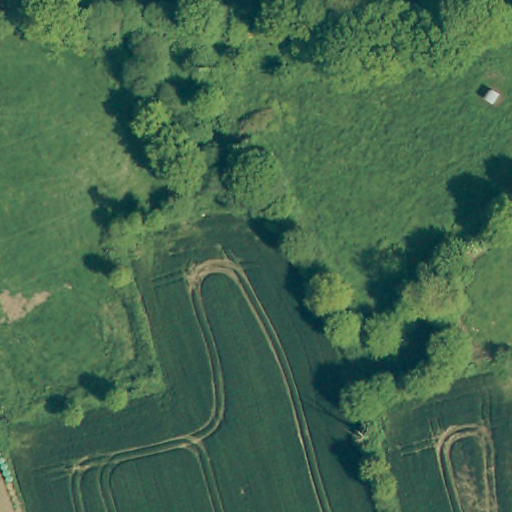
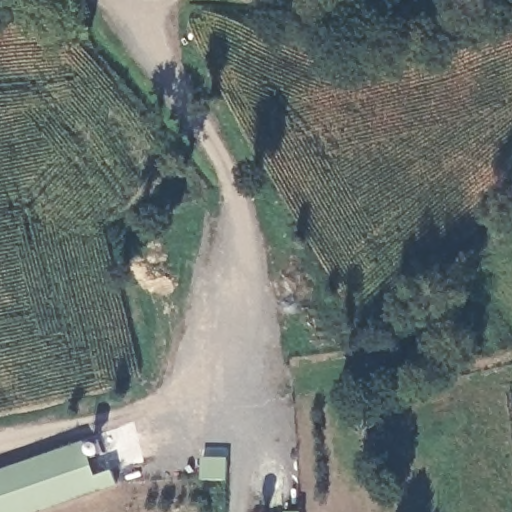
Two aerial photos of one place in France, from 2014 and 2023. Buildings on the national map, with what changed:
new [(83,441),(95,476),(114,468),(119,482),(38,512),(0,512),(0,470),(83,441)]

